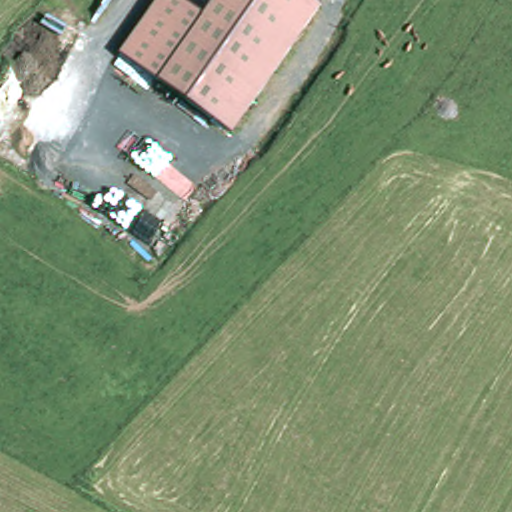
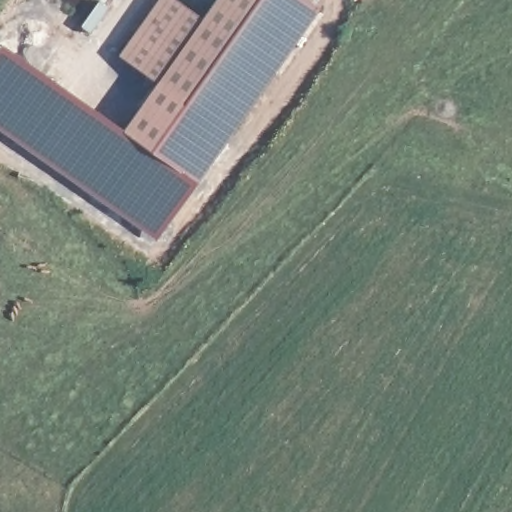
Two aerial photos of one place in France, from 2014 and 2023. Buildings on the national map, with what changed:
unchanged [(213,0),(307,0),(319,9),(232,133),(117,54),(155,0),(180,0),(202,16),(213,0)]
new [(87,107),(198,185),(163,234),(0,120),(0,50),(2,47),(87,107)]
new [(232,133),(198,185),(87,107),(121,58),(232,133)]

